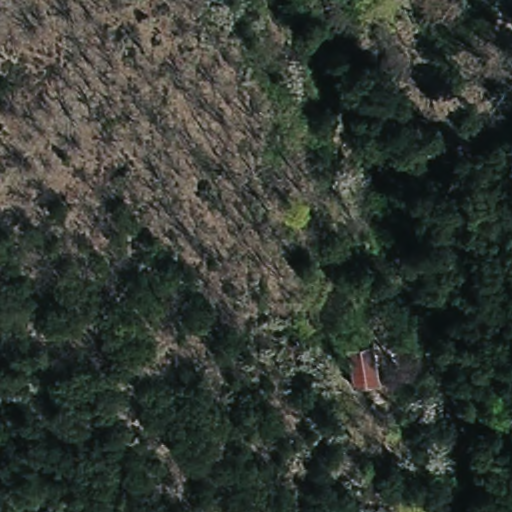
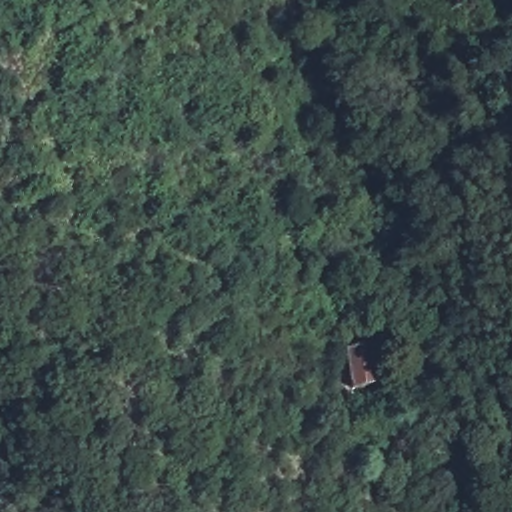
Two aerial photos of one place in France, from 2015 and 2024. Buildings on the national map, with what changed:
unchanged [(357,386),(350,345),(378,340),(385,381),(357,386)]

